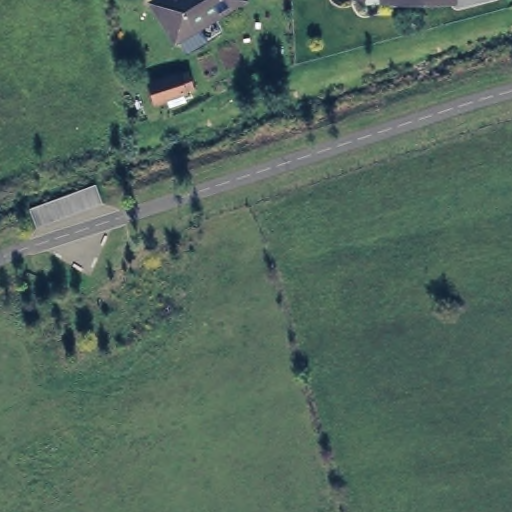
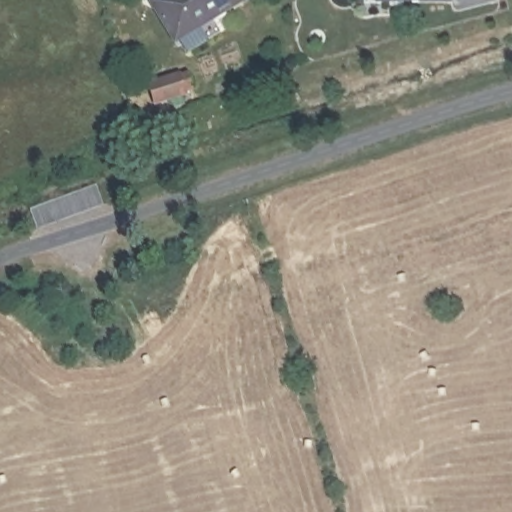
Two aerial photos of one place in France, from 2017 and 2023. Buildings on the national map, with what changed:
unchanged [(243,0),(180,39),(159,4),(165,0),(243,0)]
unchanged [(389,4),(389,0),(456,0),(456,4),(389,4)]
unchanged [(179,76),(189,73),(194,87),(183,90),(184,93),(156,102),(150,84),(178,75),(179,76)]

